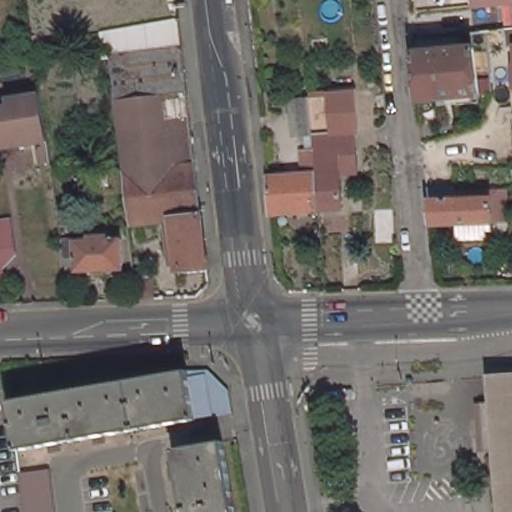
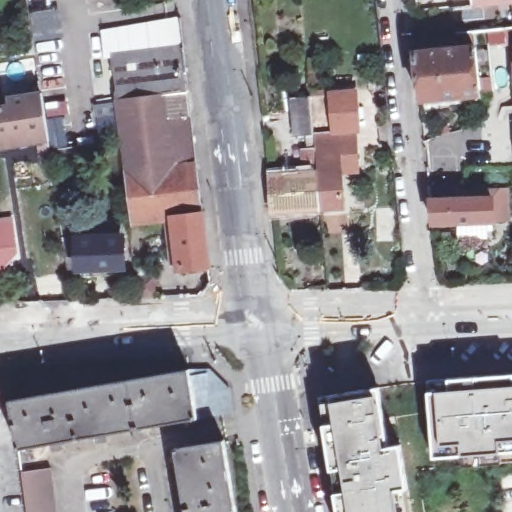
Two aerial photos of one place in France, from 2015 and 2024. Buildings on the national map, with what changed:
demolished [(479,0),(512,0),(512,6),(480,9),(479,0)]
unchanged [(416,53),(475,45),(481,100),(422,106),(416,53)]
unchanged [(16,49),(35,46),(36,55),(17,57),(16,49)]
unchanged [(113,59),(184,49),(203,217),(209,265),(179,269),(173,221),(135,225),(113,59)]
unchanged [(309,164),(307,150),(313,149),(312,138),(320,136),(320,132),(302,134),(300,117),(299,100),(299,98),(317,96),(355,94),(360,144),(363,143),(365,165),(365,175),(347,176),(348,207),(326,209),(300,211),(279,212),(275,176),(297,175),(310,174),(309,164)]
unchanged [(47,97),(52,130),(57,167),(45,169),(42,147),(0,154),(0,144),(0,113),(11,111),(10,103),(47,97)]
unchanged [(464,240),(463,222),(434,224),(430,186),(459,185),(459,190),(460,198),(493,197),(493,221),(494,239),(464,240)]
unchanged [(0,284),(0,227),(10,225),(15,257),(4,269),(7,282),(0,284)]
unchanged [(97,242),(117,241),(117,244),(130,244),(132,275),(84,276),(83,261),(72,261),(70,245),(82,245),(97,245),(97,242)]
unchanged [(136,277),(154,276),(157,298),(139,300),(136,277)]
unchanged [(24,450),(17,400),(195,371),(195,368),(215,366),(222,373),(237,387),(240,413),(222,417),(203,420),(24,450)]
demolished [(488,451),(485,401),(499,400),(497,375),(512,375),(512,512),(508,512),(503,450),(488,451)]
new [(512,437),(497,438),(497,453),(462,455),(461,444),(440,445),(437,393),(512,389),(512,437)]
new [(384,447),(400,445),(407,488),(394,490),(396,512),(351,512),(333,403),(376,396),(384,447)]
unchanged [(225,447),(236,512),(186,512),(176,455),(225,447)]
unchanged [(22,471),(52,468),(58,512),(28,512),(25,489),(22,471)]

